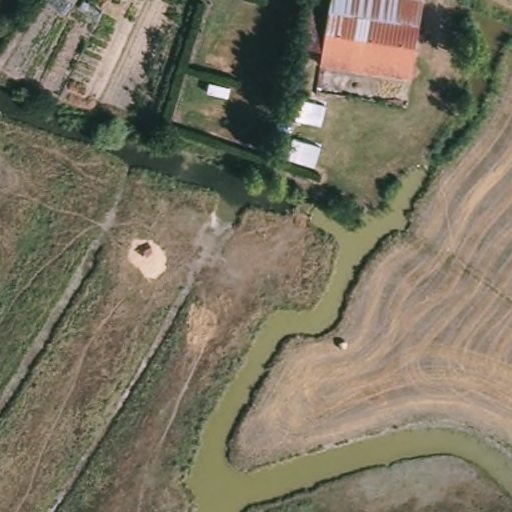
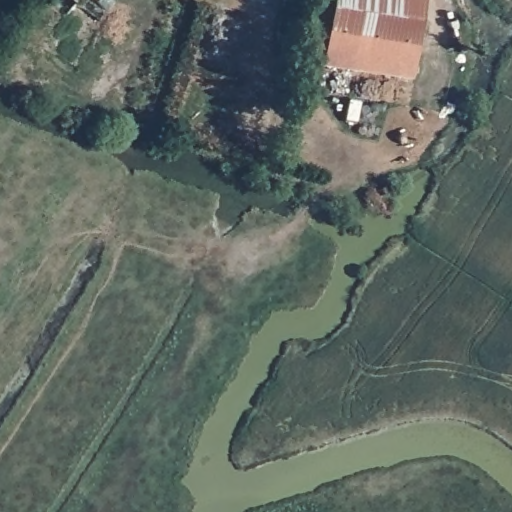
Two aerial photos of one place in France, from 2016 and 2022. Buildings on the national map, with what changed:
unchanged [(91,0),(82,15),(57,0),(91,0)]
unchanged [(332,0),(428,0),(409,84),(318,66),(332,0)]

